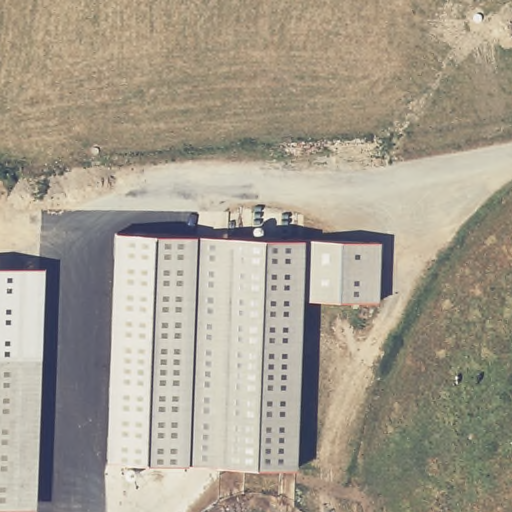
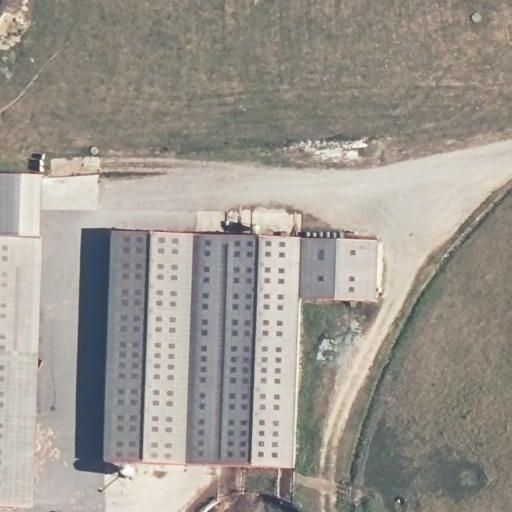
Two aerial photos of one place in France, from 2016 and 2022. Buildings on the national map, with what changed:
new [(51,176),(49,238),(47,267),(0,266),(0,175),(51,176)]
unchanged [(109,462),(113,233),(191,229),(186,456),(186,458),(109,462)]
unchanged [(191,229),(375,234),(373,293),(297,292),(293,461),(186,458),(191,229)]
unchanged [(0,357),(0,266),(47,267),(41,358),(0,357)]
unchanged [(41,358),(35,509),(0,508),(0,357),(41,358)]

